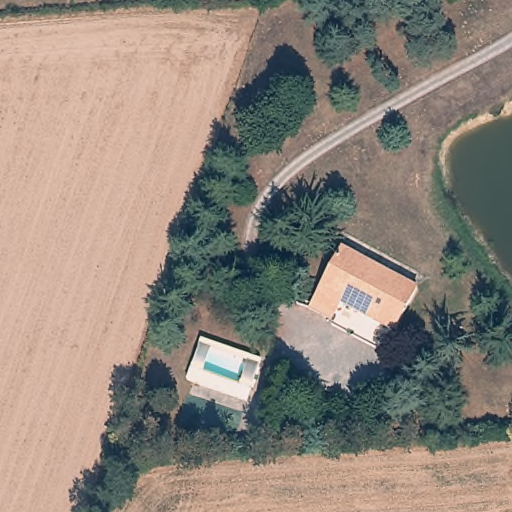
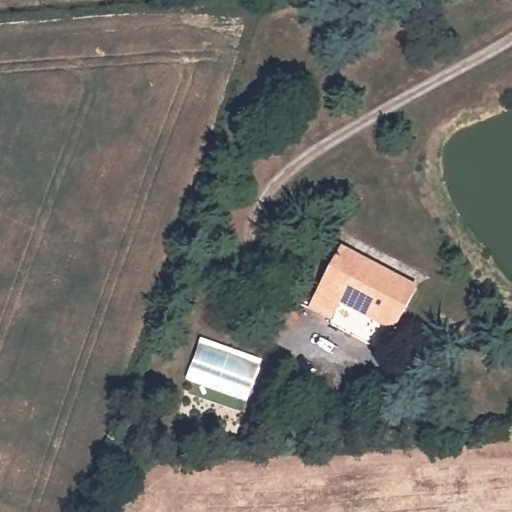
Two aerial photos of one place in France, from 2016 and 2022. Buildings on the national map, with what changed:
unchanged [(343,251),(419,291),(397,333),(340,303),(328,323),(308,311),(343,251)]
unchanged [(257,360),(244,400),(185,379),(198,339),(257,360)]

